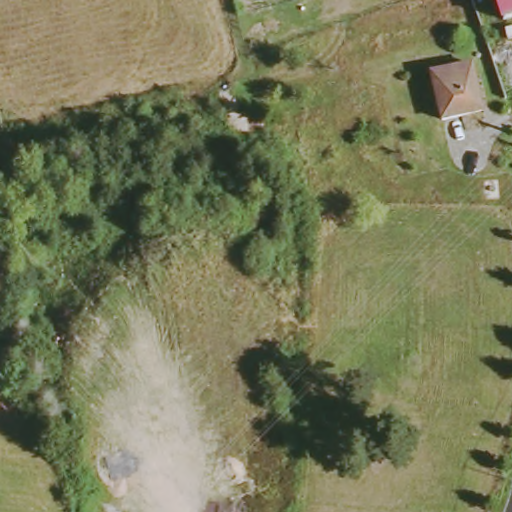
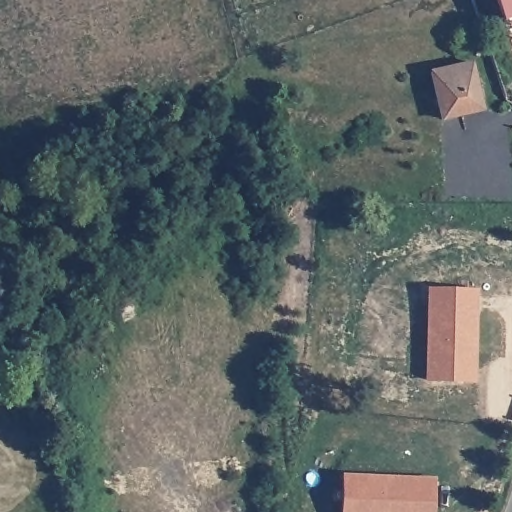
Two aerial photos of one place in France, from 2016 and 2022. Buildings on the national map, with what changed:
unchanged [(501,22),(494,0),(512,0),(512,18),(501,22)]
unchanged [(443,118),(435,72),(475,64),(483,110),(443,118)]
new [(477,290),(474,382),(423,380),(426,289),(477,290)]
new [(342,473),(435,477),(434,512),(341,512),(342,473)]

